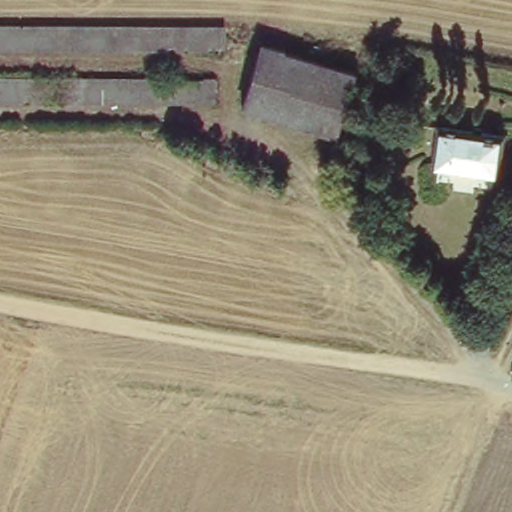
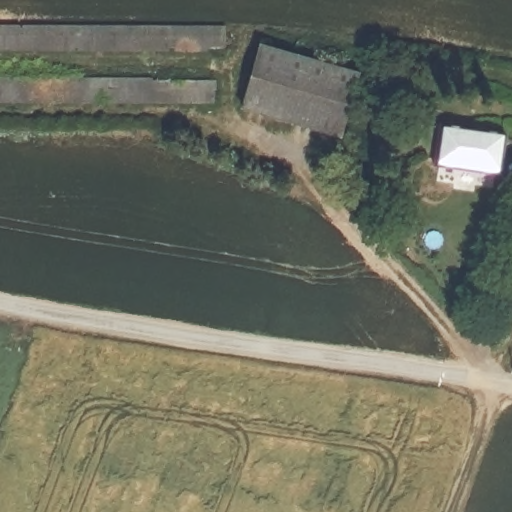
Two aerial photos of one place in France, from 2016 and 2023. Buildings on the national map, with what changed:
unchanged [(229,46),(0,47),(0,23),(229,22),(229,46)]
unchanged [(359,68),(341,135),(239,108),(258,40),(359,68)]
unchanged [(218,97),(0,98),(0,74),(219,74),(218,97)]
unchanged [(505,131),(499,175),(435,167),(441,123),(505,131)]

